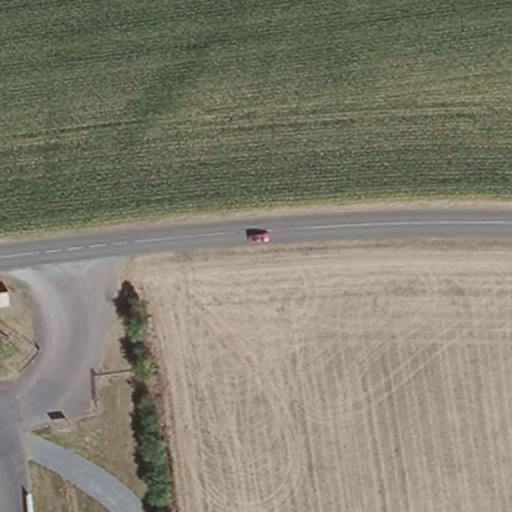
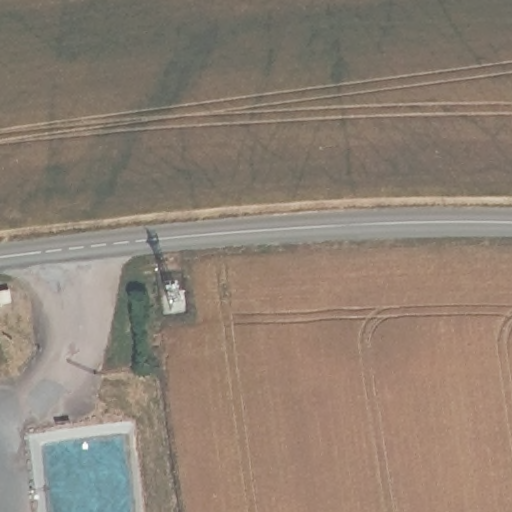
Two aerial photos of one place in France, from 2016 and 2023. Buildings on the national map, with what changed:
unchanged [(1,295),(3,311),(0,311),(0,295),(1,295)]

